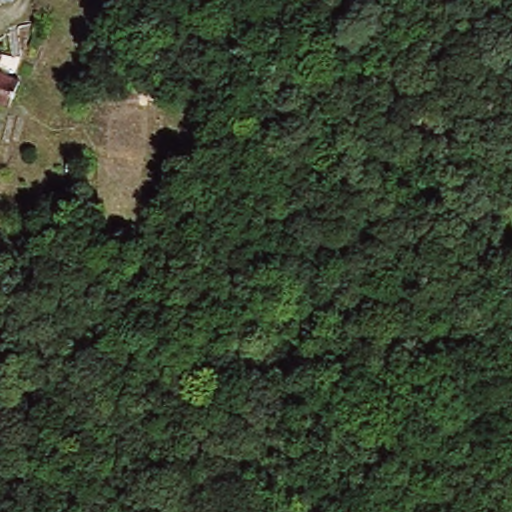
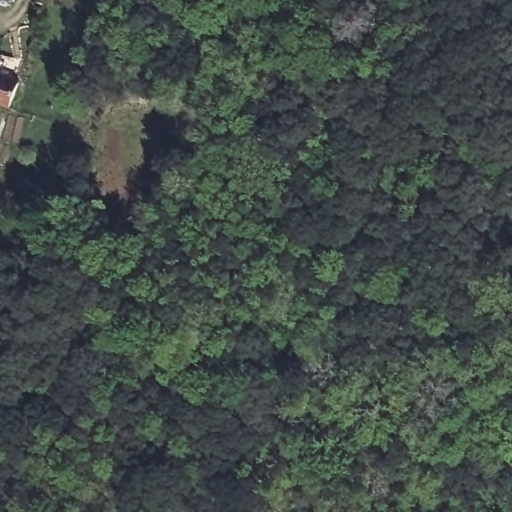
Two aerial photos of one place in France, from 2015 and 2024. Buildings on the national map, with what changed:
unchanged [(11,6),(0,2),(0,0),(13,0),(11,6)]
unchanged [(0,57),(8,60),(1,77),(20,85),(7,116),(0,113),(0,57)]

